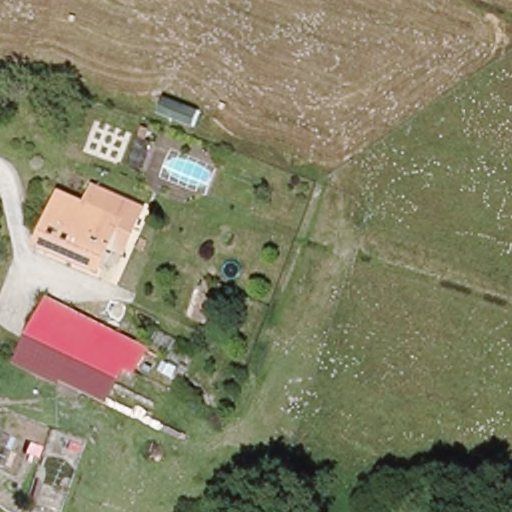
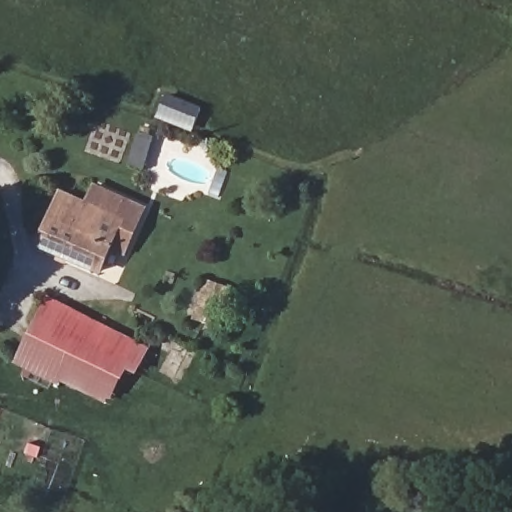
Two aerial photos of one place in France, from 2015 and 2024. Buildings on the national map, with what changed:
unchanged [(57,202),(85,214),(96,195),(130,214),(144,222),(124,258),(110,250),(94,279),(74,271),(37,254),(57,202)]
unchanged [(215,284),(228,291),(209,323),(197,317),(215,284)]
unchanged [(124,368),(114,363),(106,378),(54,352),(23,335),(33,314),(49,320),(59,299),(139,339),(124,368)]

